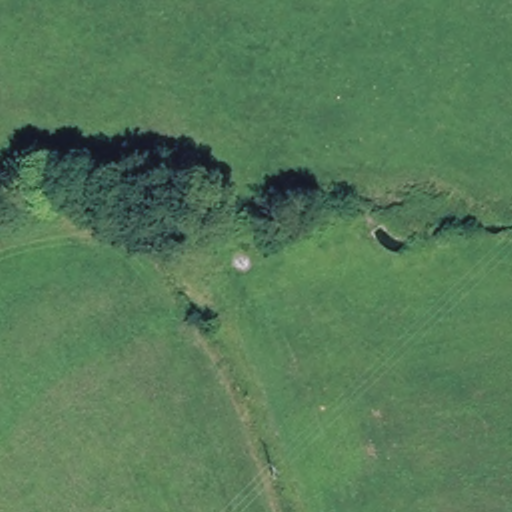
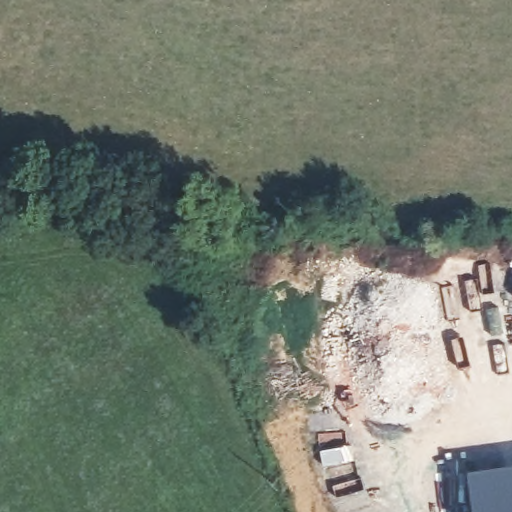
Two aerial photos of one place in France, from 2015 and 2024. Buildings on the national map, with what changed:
new [(512,512),(472,512),(467,471),(512,464),(512,512)]

